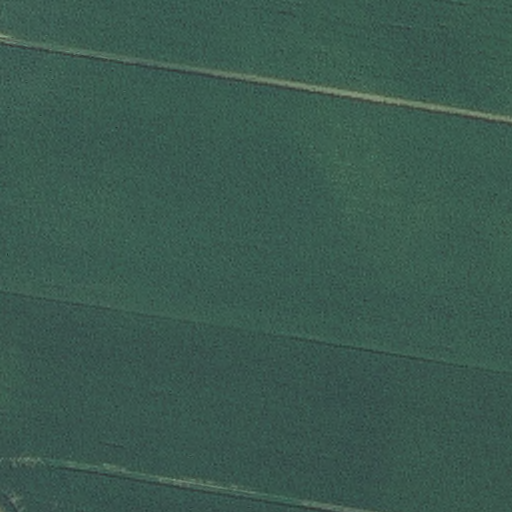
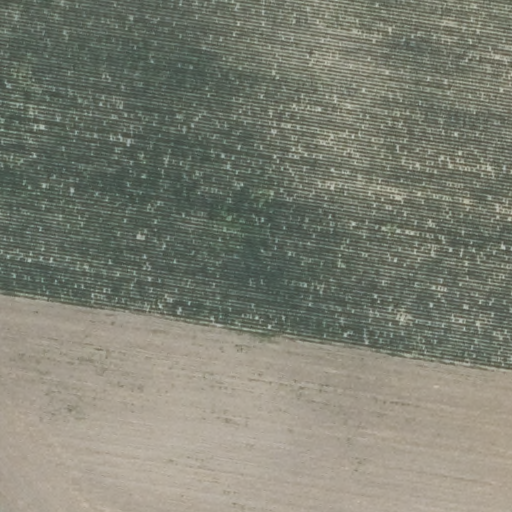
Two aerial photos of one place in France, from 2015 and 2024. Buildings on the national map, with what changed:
[]

